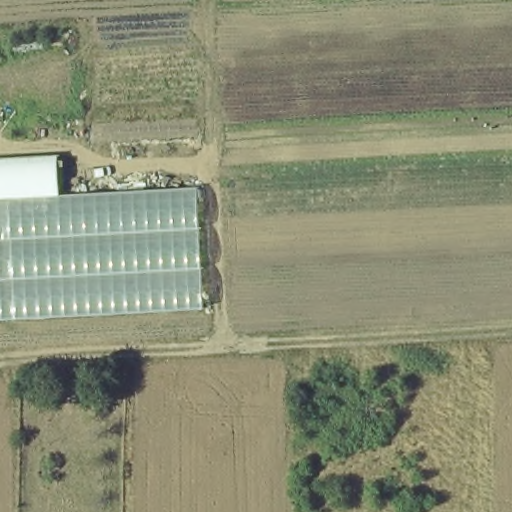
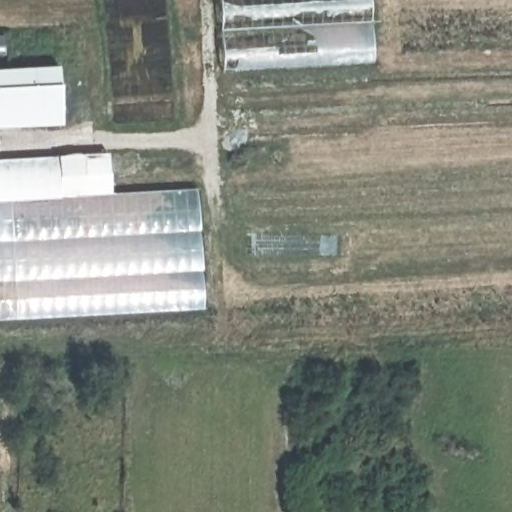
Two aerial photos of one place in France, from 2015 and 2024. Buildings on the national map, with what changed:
new [(373,64),(222,70),(220,0),(370,0),(373,64)]
new [(0,128),(0,69),(57,66),(60,125),(0,128)]
unchanged [(0,197),(0,157),(59,153),(60,157),(61,194),(0,197)]
unchanged [(61,194),(200,186),(203,237),(207,307),(186,308),(0,319),(0,197),(61,194)]

